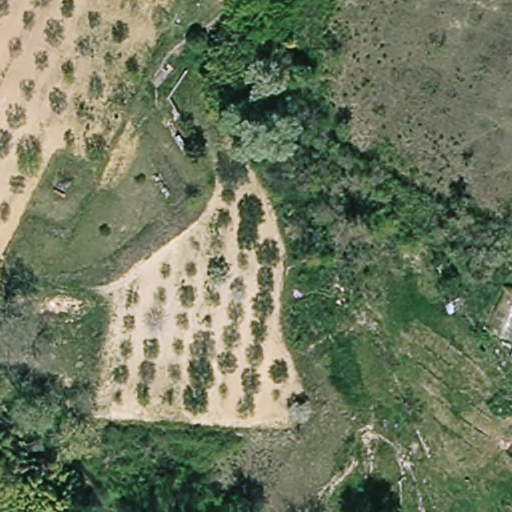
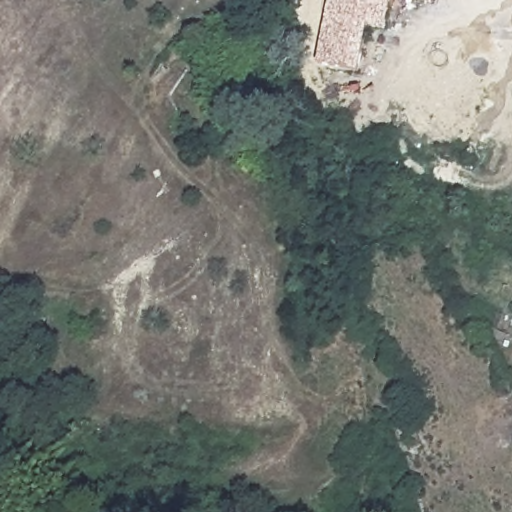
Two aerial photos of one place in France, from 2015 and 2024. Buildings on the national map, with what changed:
new [(390,0),(386,26),(366,24),(358,69),(320,65),(332,0),(390,0)]
new [(434,0),(440,0),(440,1),(434,0)]

